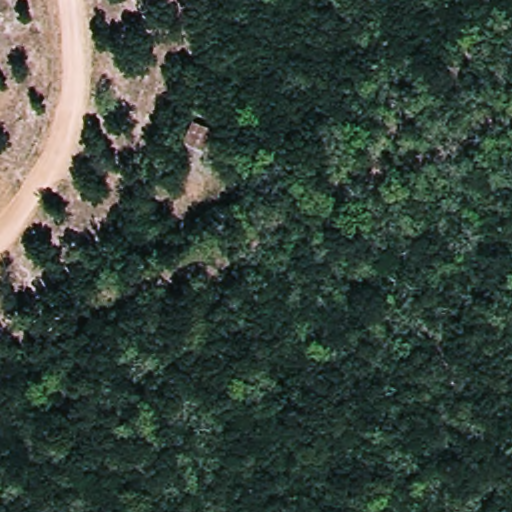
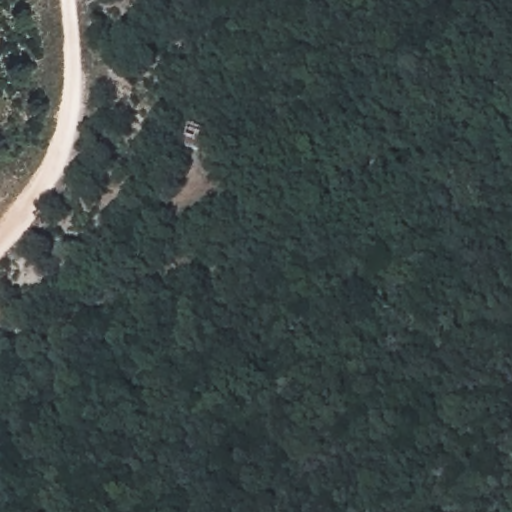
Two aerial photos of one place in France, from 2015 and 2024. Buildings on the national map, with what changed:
unchanged [(179,141),(195,111),(213,117),(198,156),(179,141)]

